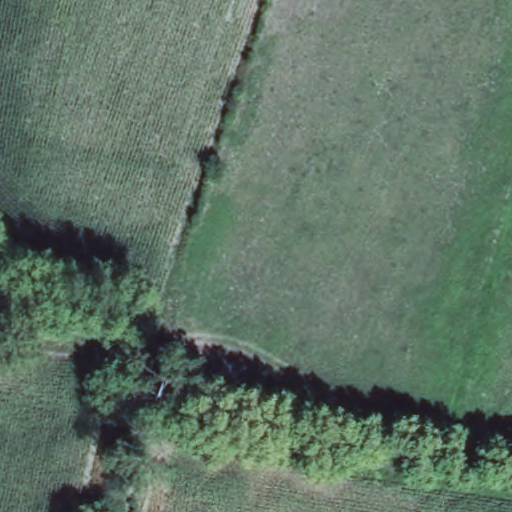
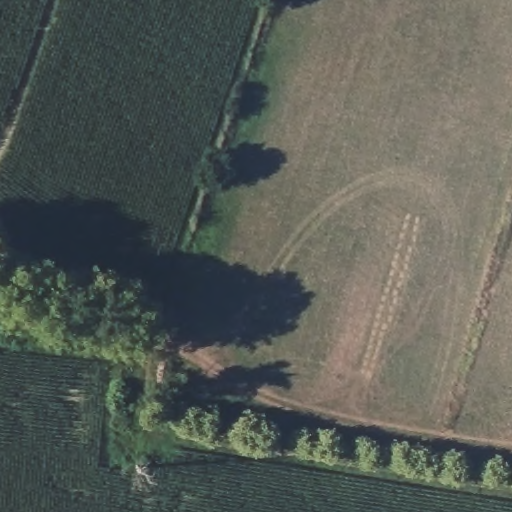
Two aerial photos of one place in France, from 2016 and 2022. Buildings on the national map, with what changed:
unchanged [(165,366),(189,370),(183,400),(158,394),(165,366)]

